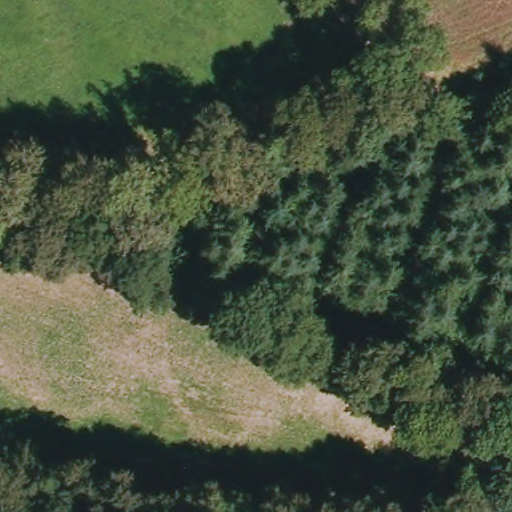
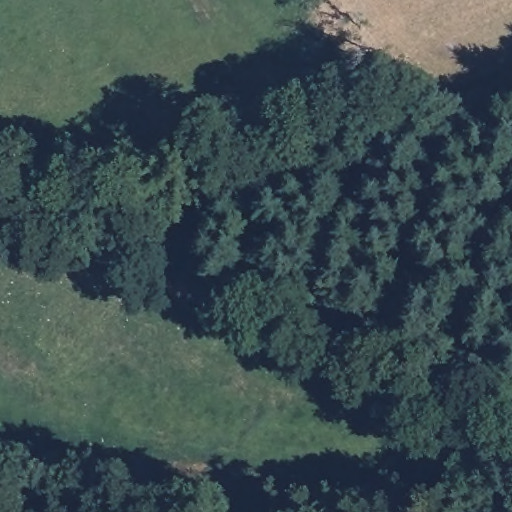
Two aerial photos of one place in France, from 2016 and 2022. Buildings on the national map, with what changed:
[]

